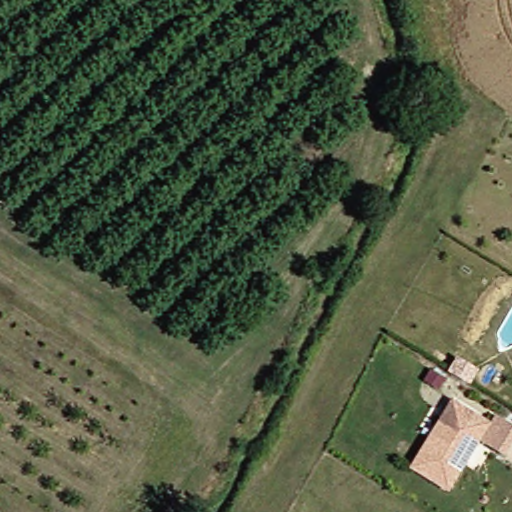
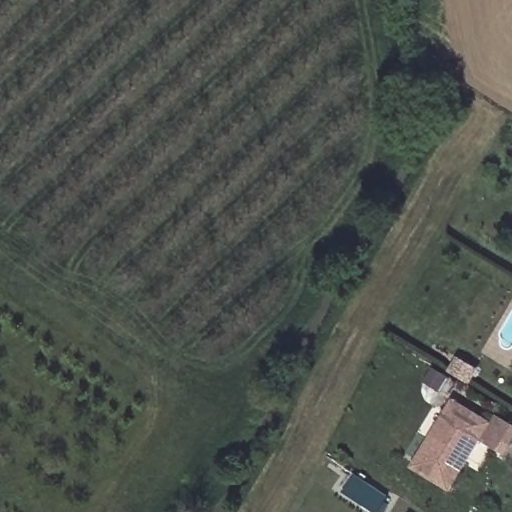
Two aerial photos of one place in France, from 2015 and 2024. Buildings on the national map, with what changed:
unchanged [(495,424),(455,490),(419,468),(459,402),(495,424)]

